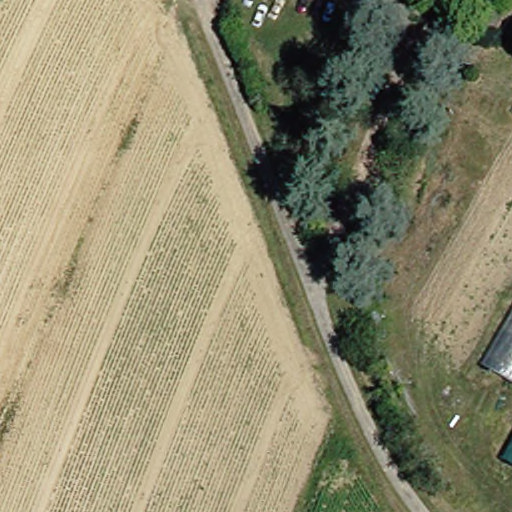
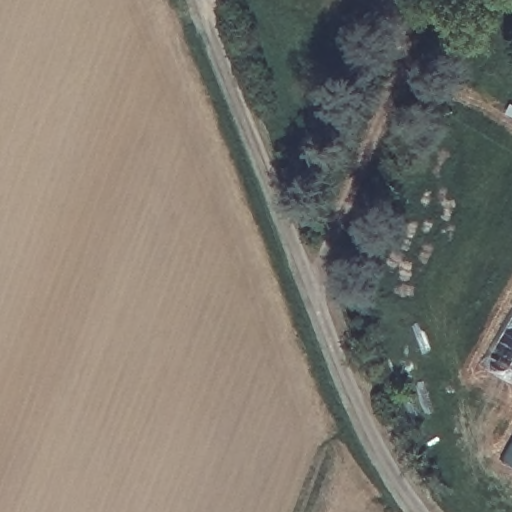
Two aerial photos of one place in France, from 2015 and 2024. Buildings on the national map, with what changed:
unchanged [(512,380),(488,365),(512,321),(512,380)]
unchanged [(512,453),(512,462),(509,459),(512,453)]

